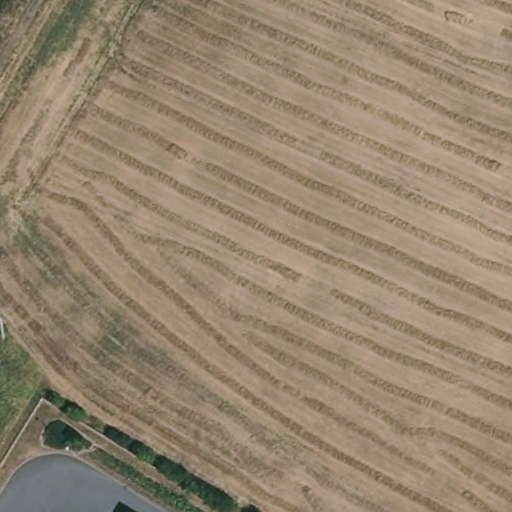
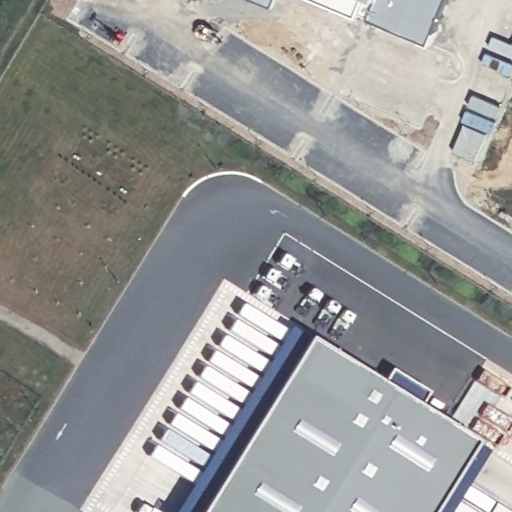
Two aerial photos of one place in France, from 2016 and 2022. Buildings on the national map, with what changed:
new [(470,442),(427,512),(197,512),(304,339),(470,442)]

